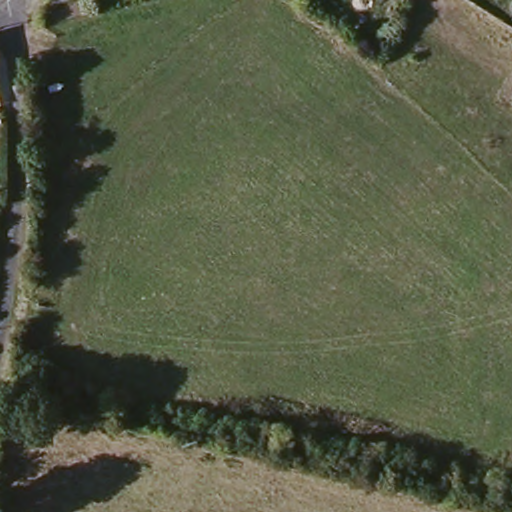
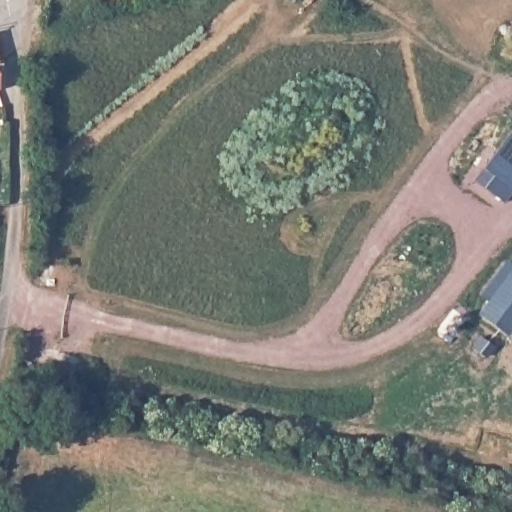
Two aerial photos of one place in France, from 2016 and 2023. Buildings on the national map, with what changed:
new [(512,115),(512,120),(510,118),(512,115)]
new [(512,134),(512,194),(484,172),(512,134)]
new [(477,314),(486,303),(477,297),(505,261),(512,266),(512,330),(507,337),(477,314)]

